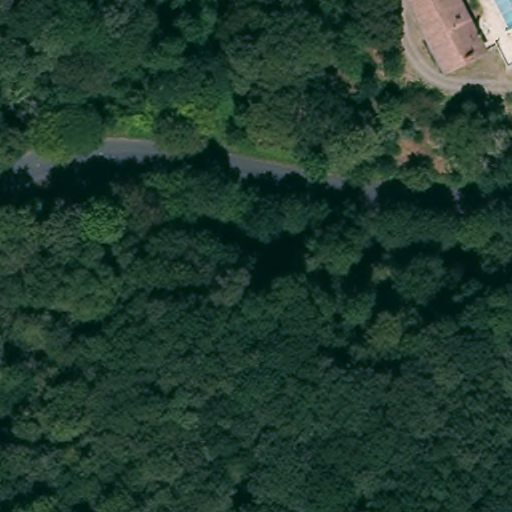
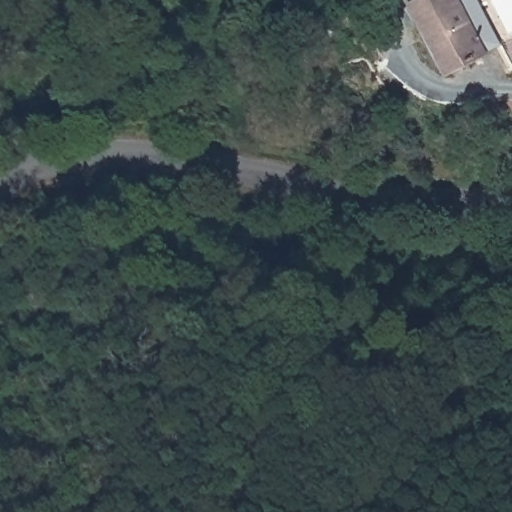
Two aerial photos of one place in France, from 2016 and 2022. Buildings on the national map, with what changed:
unchanged [(402,3),(410,0),(456,0),(482,55),(438,76),(402,3)]

